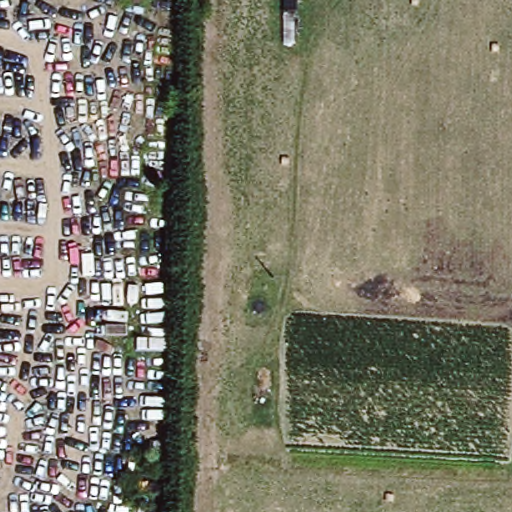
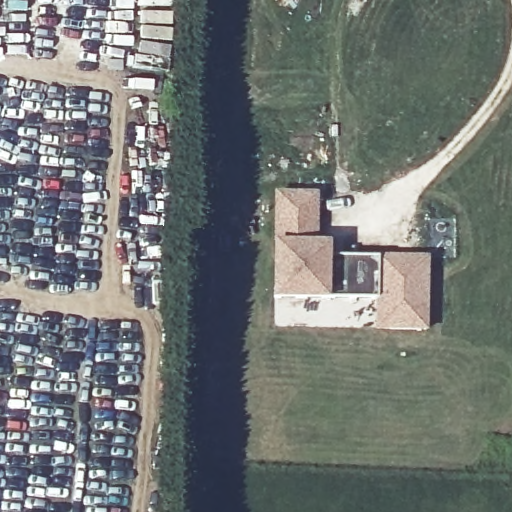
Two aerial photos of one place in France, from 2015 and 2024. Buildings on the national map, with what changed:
new [(319,192),(319,243),(273,242),(274,191),(319,192)]
new [(273,242),(319,243),(330,243),(330,254),(329,301),(272,300),(273,242)]
new [(428,332),(374,331),(374,302),(329,301),(330,254),(429,256),(428,332)]

